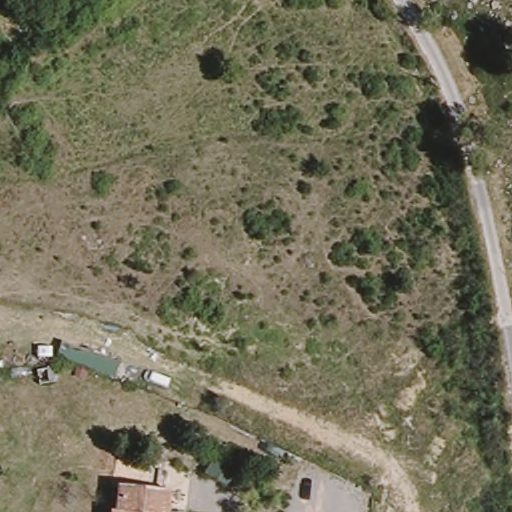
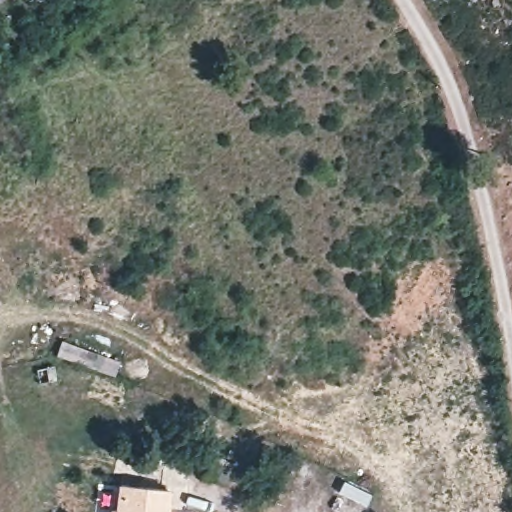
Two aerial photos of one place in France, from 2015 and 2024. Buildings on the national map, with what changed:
unchanged [(169,512),(165,512),(153,511),(153,512),(116,512),(117,507),(121,507),(124,482),(171,486),(169,512)]

